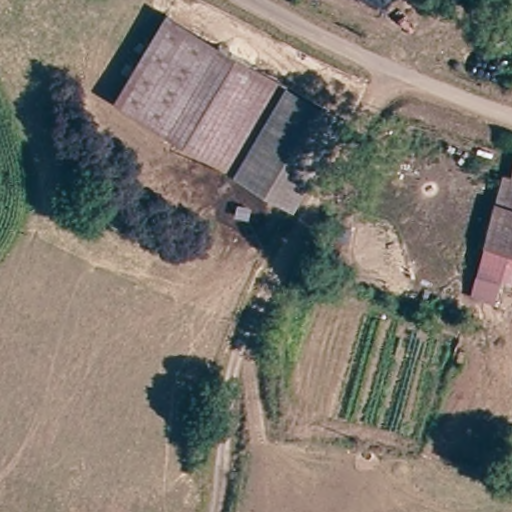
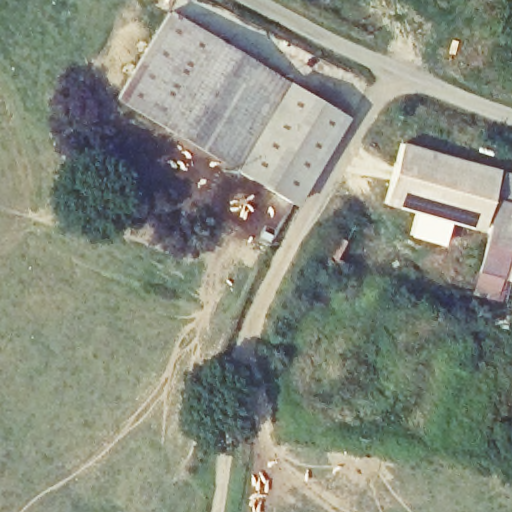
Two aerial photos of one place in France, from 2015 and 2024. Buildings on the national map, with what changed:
unchanged [(269,75),(329,106),(281,195),(223,164),(108,102),(155,11),(269,75)]
new [(482,233),(382,204),(401,143),(498,170),(482,233)]
unchanged [(512,223),(512,239),(511,244),(512,245),(512,279),(473,268),(503,148),(512,150),(512,190),(503,221),(512,223)]
unchanged [(512,190),(512,223),(503,221),(512,190)]
unchanged [(511,244),(512,239),(512,245),(511,244)]

